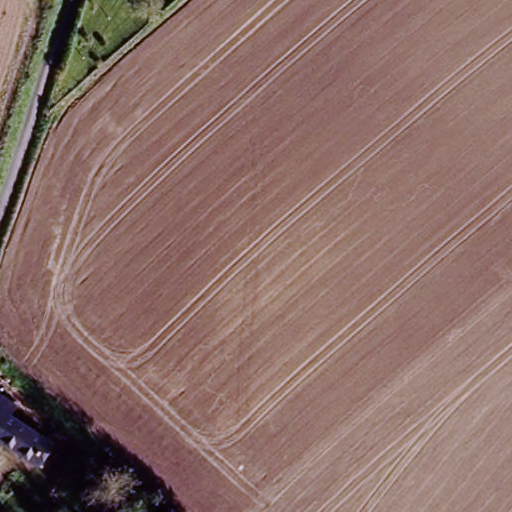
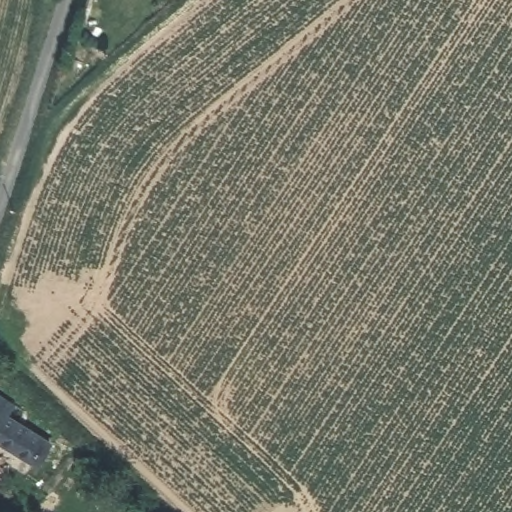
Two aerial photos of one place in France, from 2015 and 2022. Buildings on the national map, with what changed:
unchanged [(12,413),(9,421),(45,443),(34,466),(0,447),(0,406),(12,413)]
unchanged [(126,506),(133,512),(122,512),(126,506)]

